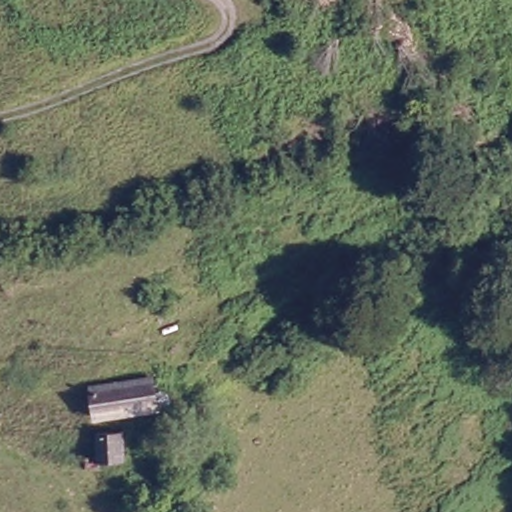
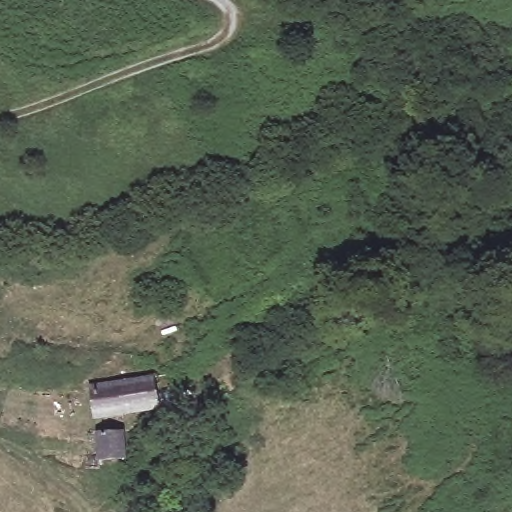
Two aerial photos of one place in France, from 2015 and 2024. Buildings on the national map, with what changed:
unchanged [(127,414),(95,420),(95,389),(157,378),(160,407),(127,414)]
unchanged [(106,458),(103,467),(88,468),(87,454),(98,453),(98,430),(124,428),(125,457),(106,458)]

